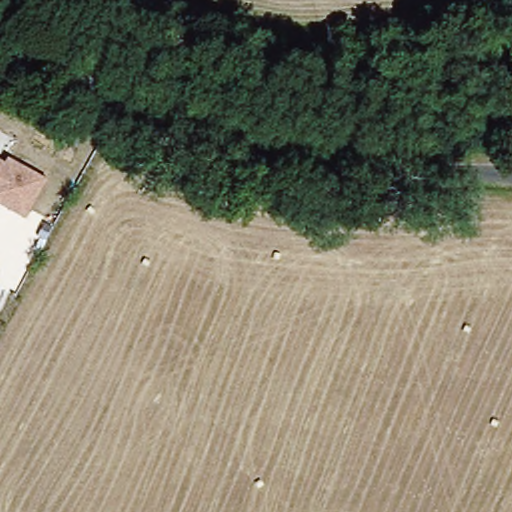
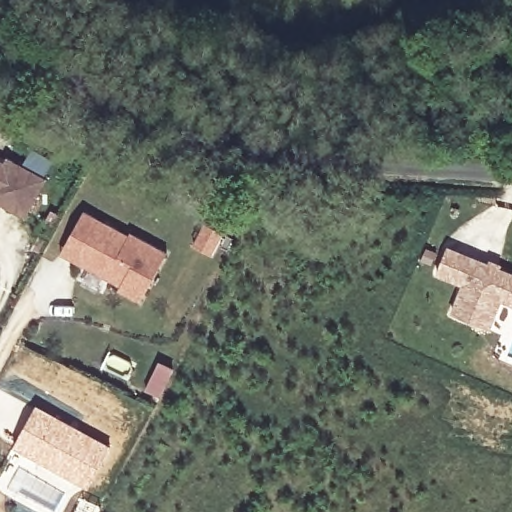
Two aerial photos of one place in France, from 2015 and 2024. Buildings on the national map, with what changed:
unchanged [(0,207),(0,156),(38,176),(17,216),(0,207)]
new [(127,234),(128,232),(167,252),(140,304),(117,293),(120,287),(58,255),(82,210),(127,234)]
new [(493,262),(512,271),(512,305),(501,300),(488,329),(447,314),(460,286),(434,276),(447,244),(493,262)]
new [(158,361),(174,369),(160,399),(142,391),(158,361)]
new [(36,404),(111,446),(85,491),(77,486),(11,451),(36,404)]
new [(15,464),(7,459),(11,451),(77,486),(61,512),(38,512),(2,489),(15,464)]
new [(80,499),(100,508),(97,512),(74,512),(80,499)]

